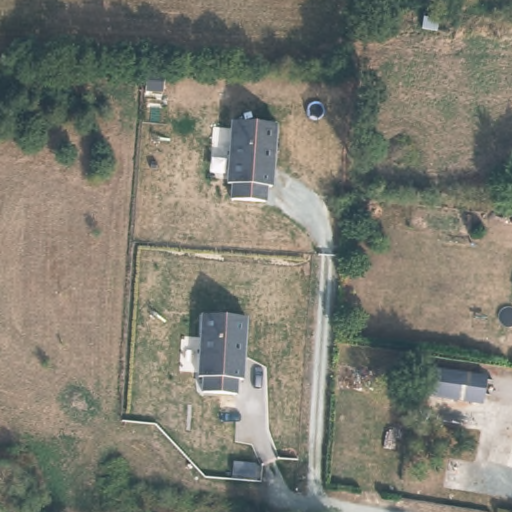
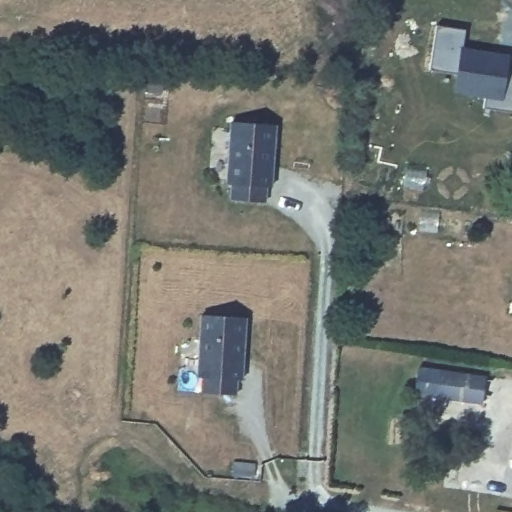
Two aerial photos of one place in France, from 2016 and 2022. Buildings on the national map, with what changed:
new [(509,55),(507,70),(512,70),(512,112),(483,107),(484,99),(454,94),(456,74),(428,69),(435,25),(465,30),(461,48),(509,55)]
unchanged [(268,186),(262,186),(261,202),(228,200),(228,185),(223,185),(227,123),(270,124),(268,186)]
unchanged [(239,383),(233,383),(232,397),(199,396),(199,380),(195,380),(197,318),(242,320),(239,383)]
unchanged [(487,402),(441,395),(423,392),(426,365),(444,368),(490,375),(487,402)]
unchanged [(18,512),(0,512),(0,511),(18,511),(18,512)]

